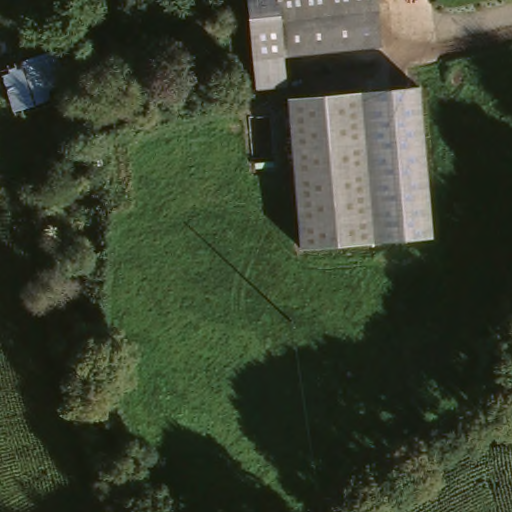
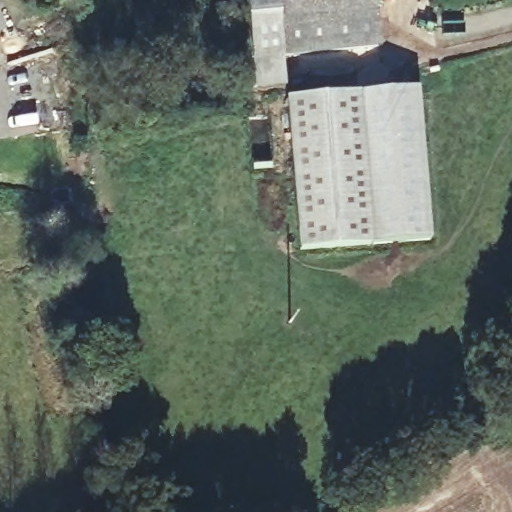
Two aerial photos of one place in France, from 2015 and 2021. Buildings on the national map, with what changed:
unchanged [(249,0),(378,0),(383,43),(254,63),(249,0)]
unchanged [(1,19),(0,19),(0,17),(1,19)]
unchanged [(28,118),(6,73),(35,59),(55,99),(28,118)]
unchanged [(415,94),(436,240),(305,255),(292,104),(415,94)]

